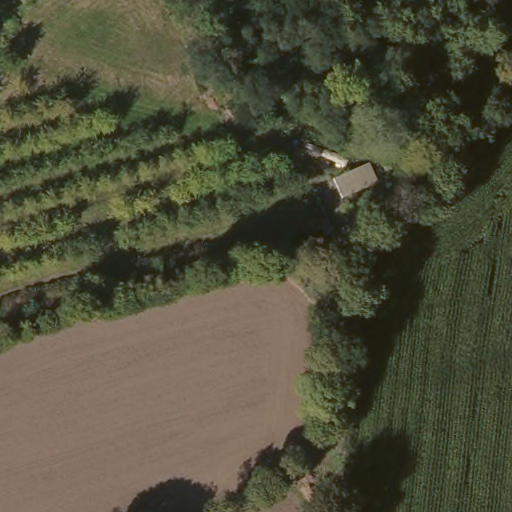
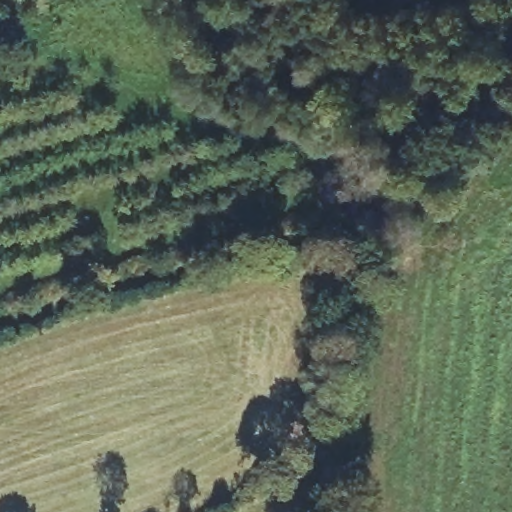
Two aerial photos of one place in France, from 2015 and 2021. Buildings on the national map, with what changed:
[]

